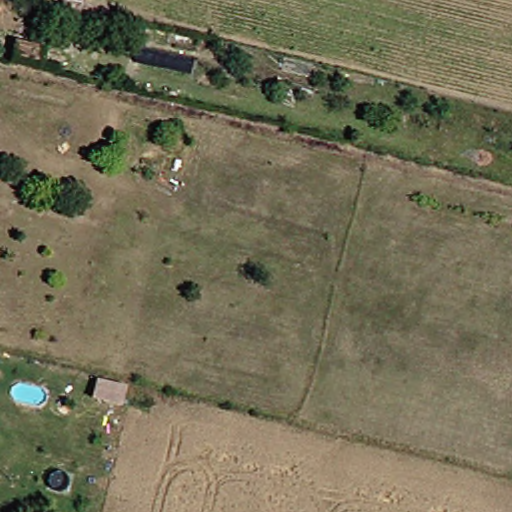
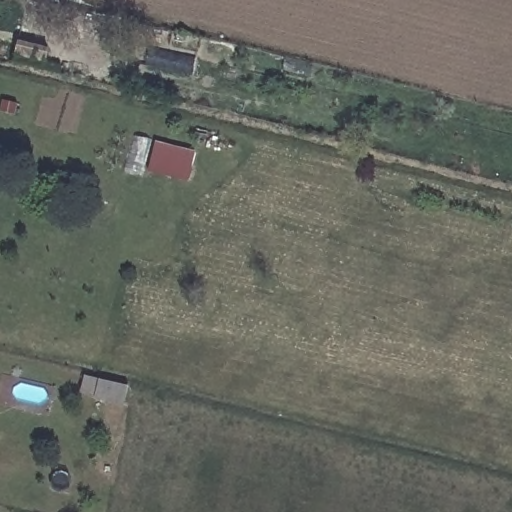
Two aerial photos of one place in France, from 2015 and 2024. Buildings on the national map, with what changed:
unchanged [(51,54),(48,67),(18,59),(21,46),(51,54)]
new [(196,151),(190,181),(149,172),(155,142),(196,151)]

